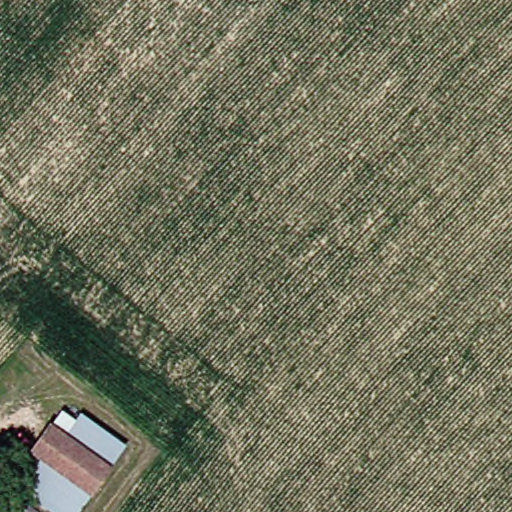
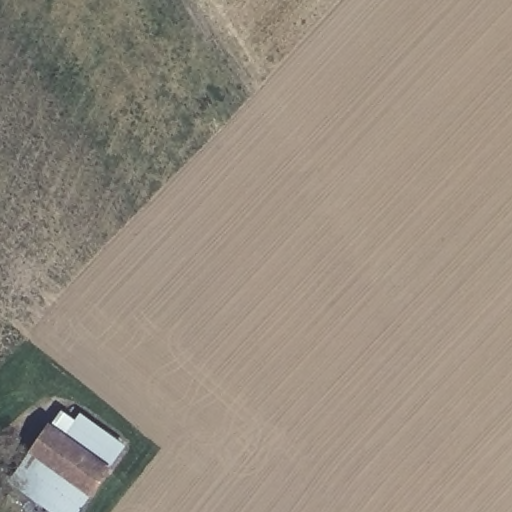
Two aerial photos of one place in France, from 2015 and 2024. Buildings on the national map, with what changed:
unchanged [(0,482),(0,480),(53,408),(66,417),(72,410),(115,442),(66,512),(44,512),(0,482)]

